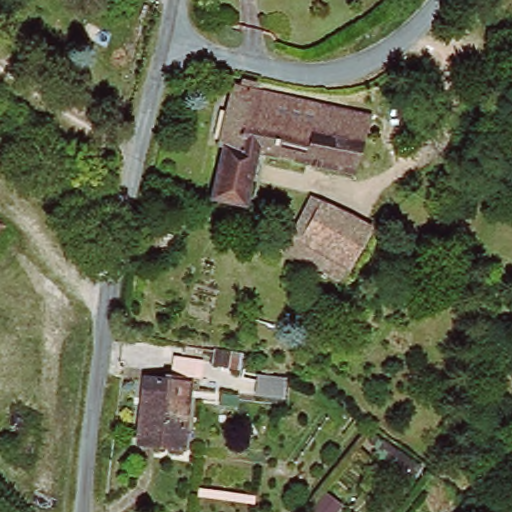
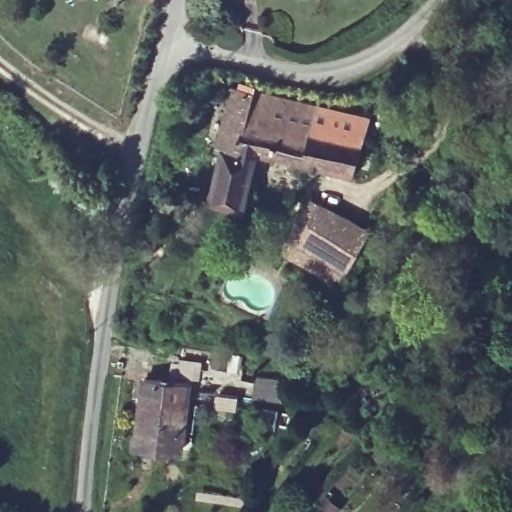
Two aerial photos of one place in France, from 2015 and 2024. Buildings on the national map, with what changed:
unchanged [(230,93),(255,98),(238,155),(222,151),(215,150),(230,93)]
unchanged [(366,120),(354,176),(254,159),(242,210),(210,204),(222,151),(238,155),(255,98),(366,120)]
unchanged [(342,280),(288,250),(296,234),(283,229),(301,194),(315,201),(368,229),(342,280)]
unchanged [(139,230),(155,232),(152,254),(135,252),(139,230)]
unchanged [(239,352),(238,366),(211,363),(213,348),(239,352)]
unchanged [(282,380),(282,398),(252,395),(255,376),(282,380)]
unchanged [(193,390),(186,449),(139,443),(145,385),(193,390)]

